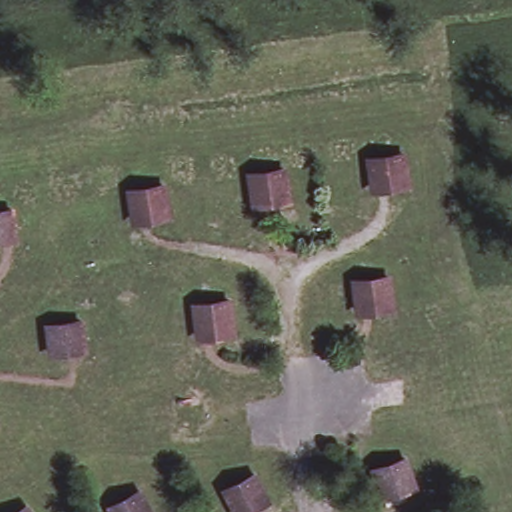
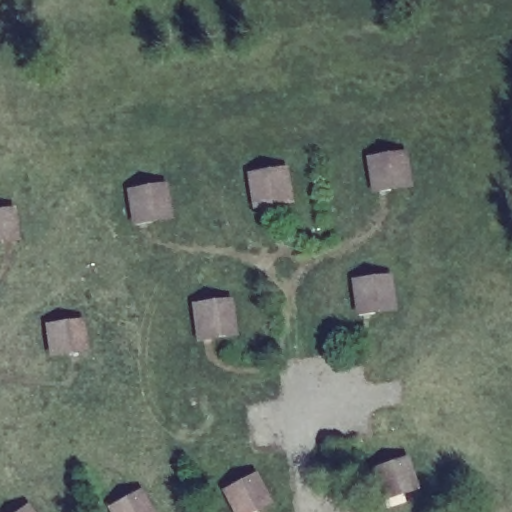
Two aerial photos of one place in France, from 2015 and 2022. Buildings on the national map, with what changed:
unchanged [(407,182),(393,184),(392,176),(371,178),(369,156),(404,152),(407,182)]
unchanged [(270,197),(253,200),(251,192),(234,195),(230,170),(265,165),(270,197)]
unchanged [(168,219),(151,220),(150,213),(132,215),(130,192),(165,188),(168,219)]
unchanged [(16,241),(0,243),(0,212),(11,210),(16,241)]
unchanged [(393,311),(378,313),(377,305),(357,307),(355,284),(388,280),(393,311)]
unchanged [(218,346),(217,340),(196,342),(193,317),(230,313),(234,344),(218,346)]
unchanged [(85,350),(70,352),(69,347),(50,350),(47,328),(81,324),(85,350)]
unchanged [(401,495),(398,488),(383,495),(376,474),(407,464),(416,490),(401,495)]
unchanged [(262,512),(260,512),(257,507),(247,512),(243,512),(233,494),(260,479),(275,506),(262,512)]
unchanged [(142,495),(151,512),(113,512),(142,495)]

